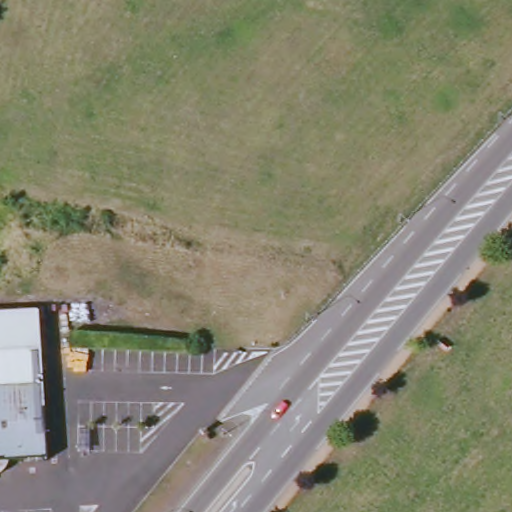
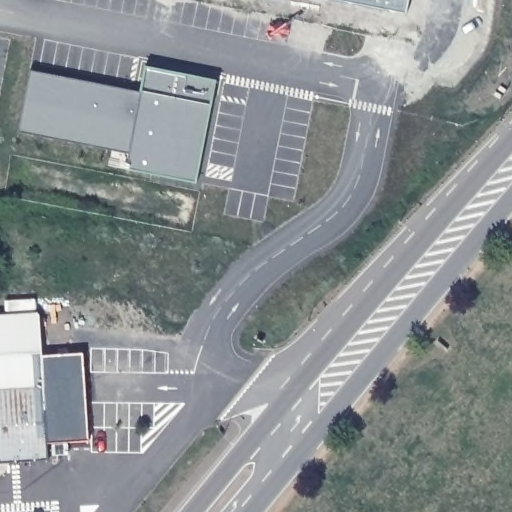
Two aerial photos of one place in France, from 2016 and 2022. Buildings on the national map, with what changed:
new [(413,0),(409,16),(324,0),(413,0)]
new [(128,165),(130,152),(20,130),(33,71),(141,91),(146,67),(216,81),(196,179),(128,165)]
unchanged [(1,477),(0,477),(0,318),(43,317),(50,463),(10,465),(6,471),(1,477)]

